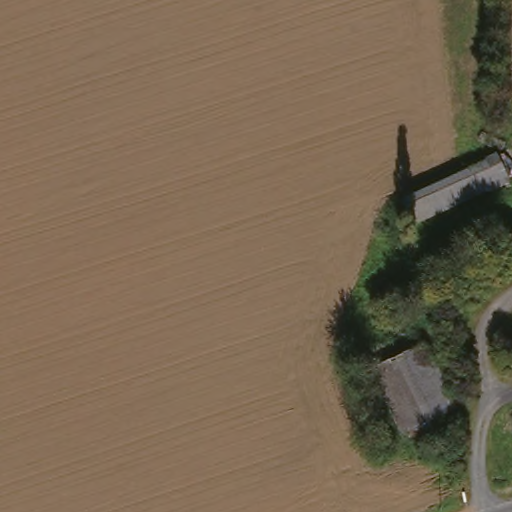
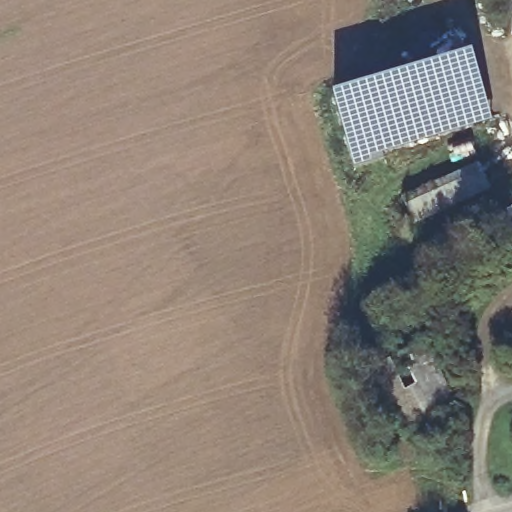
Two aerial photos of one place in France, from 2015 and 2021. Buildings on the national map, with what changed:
new [(335,101),(473,59),(493,123),(371,161),(373,164),(356,169),(335,101)]
unchanged [(498,159),(511,187),(418,230),(403,200),(498,159)]
unchanged [(466,403),(439,417),(448,435),(424,447),(415,428),(403,435),(361,349),(423,318),(466,403)]

